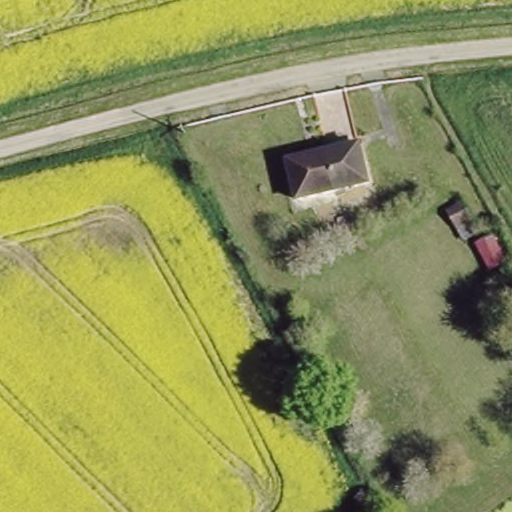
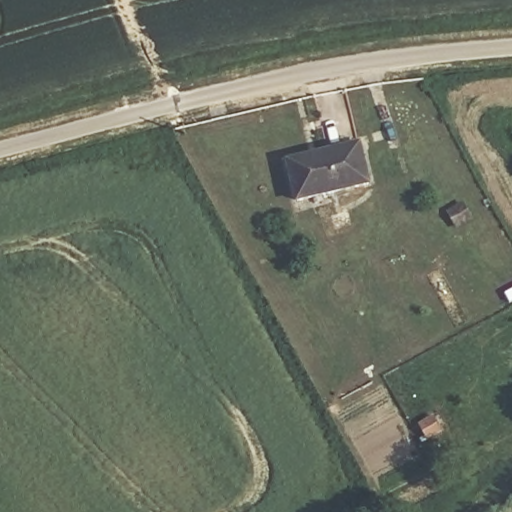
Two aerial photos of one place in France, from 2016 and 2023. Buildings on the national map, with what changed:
unchanged [(298,198),(288,157),(360,140),(369,181),(298,198)]

